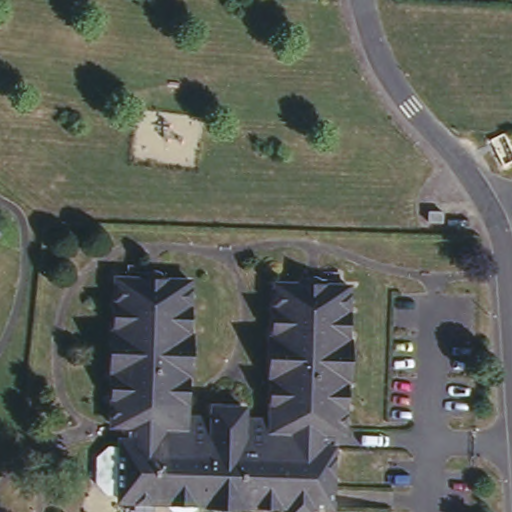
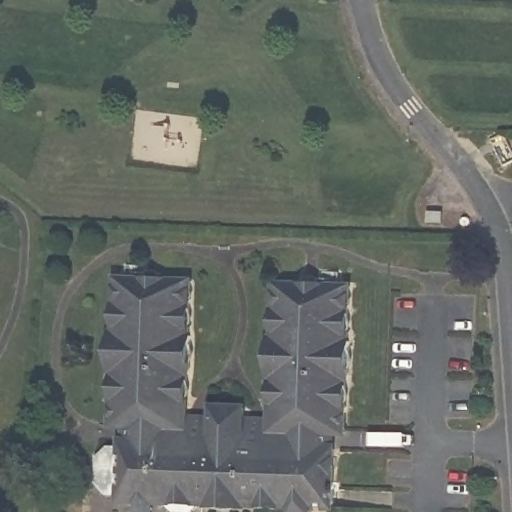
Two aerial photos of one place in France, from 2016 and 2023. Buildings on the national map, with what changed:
unchanged [(188,511),(171,511),(162,500),(117,498),(117,492),(103,493),(98,488),(91,481),(91,458),(100,450),(105,445),(118,445),(118,439),(122,439),(123,425),(108,424),(110,369),(106,369),(107,333),(112,332),(114,278),(147,279),(146,285),(155,284),(156,280),(189,280),(186,335),(189,335),(187,372),(184,372),(182,419),(212,420),(212,407),(244,408),(244,421),(270,422),(272,376),(268,375),(269,341),(273,341),(274,284),(306,284),(307,288),(315,288),(316,285),(349,286),(346,342),(350,342),(348,380),(344,380),(342,433),(327,432),(327,445),(331,446),(328,507),(307,506),(306,512),(286,512),(287,505),(198,501),(188,511)]

